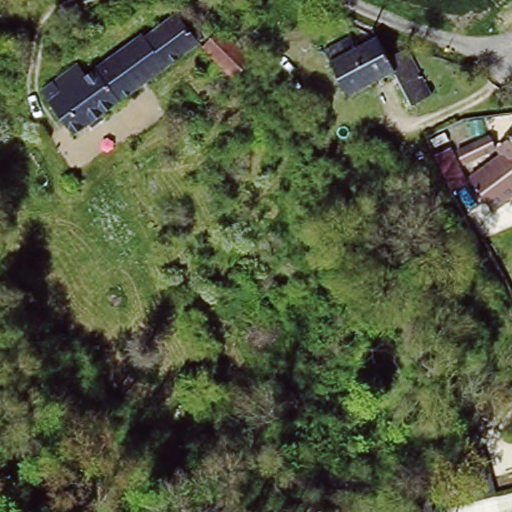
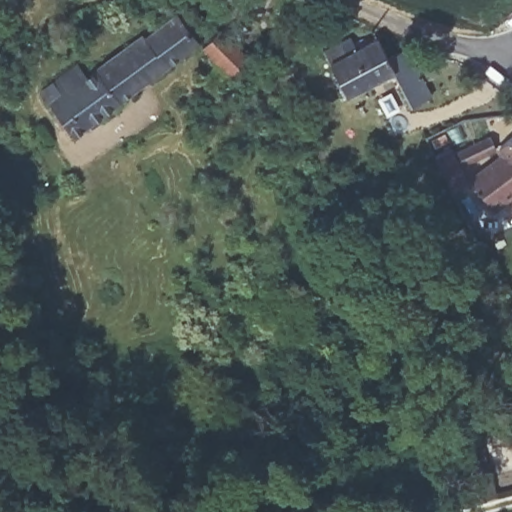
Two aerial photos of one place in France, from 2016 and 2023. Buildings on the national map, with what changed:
unchanged [(47,95),(84,68),(92,79),(148,38),(152,42),(185,18),(206,47),(79,139),(47,95)]
unchanged [(228,34),(259,66),(241,85),(210,51),(221,41),(228,34)]
unchanged [(318,69),(313,58),(343,44),(348,55),(368,46),(377,64),(393,56),(418,107),(402,115),(403,116),(400,118),(382,83),(369,89),(335,105),(318,69)]
unchanged [(462,145),(496,136),(500,147),(465,156),(462,145)]
unchanged [(475,174),(512,151),(506,143),(512,139),(512,199),(497,209),(475,174)]
unchanged [(429,159),(436,156),(435,152),(450,145),(467,178),(452,185),(455,191),(447,196),(429,159)]
unchanged [(463,472),(482,468),(490,502),(472,507),(463,472)]
unchanged [(427,512),(402,512),(399,496),(422,491),(427,512)]

